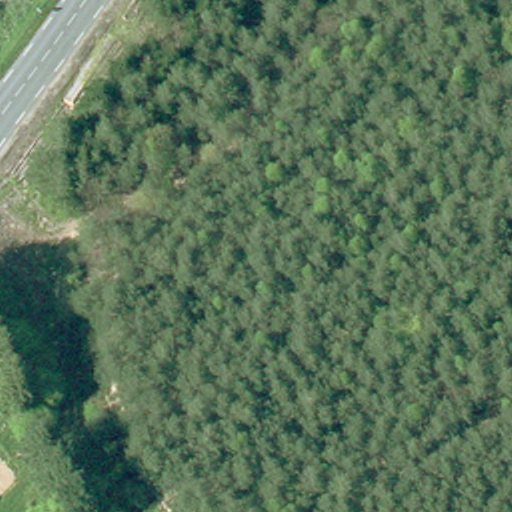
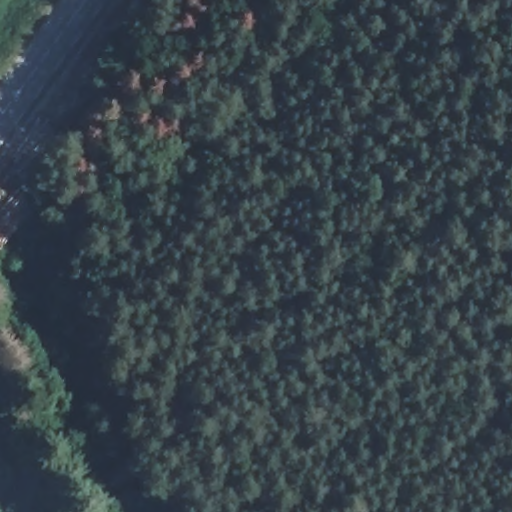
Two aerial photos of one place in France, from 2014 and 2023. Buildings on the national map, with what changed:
[]

